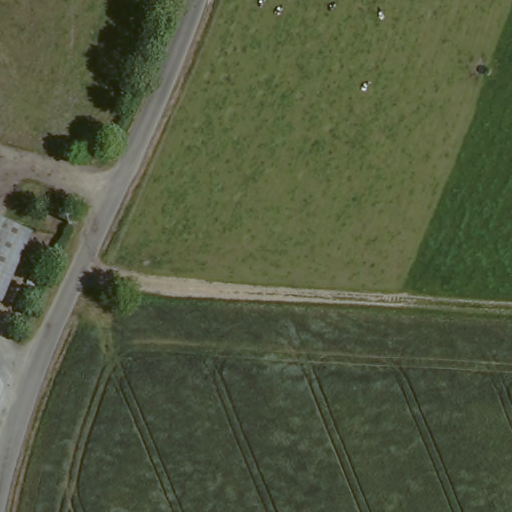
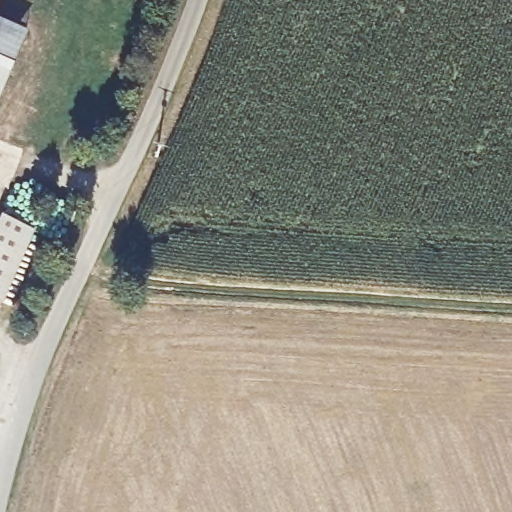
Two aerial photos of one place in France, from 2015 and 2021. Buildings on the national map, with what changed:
new [(0,101),(0,23),(27,35),(0,101)]
unchanged [(2,307),(0,306),(0,218),(34,232),(2,307)]

